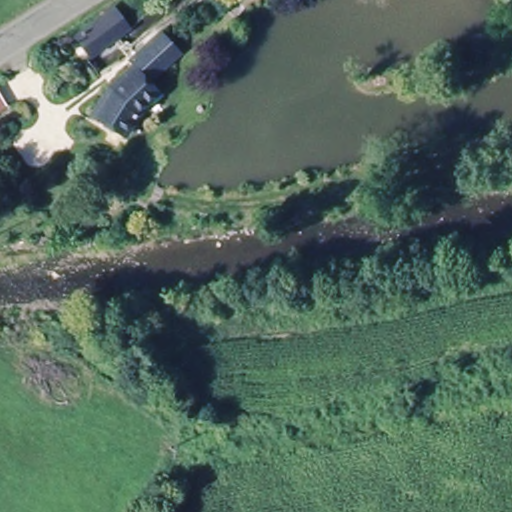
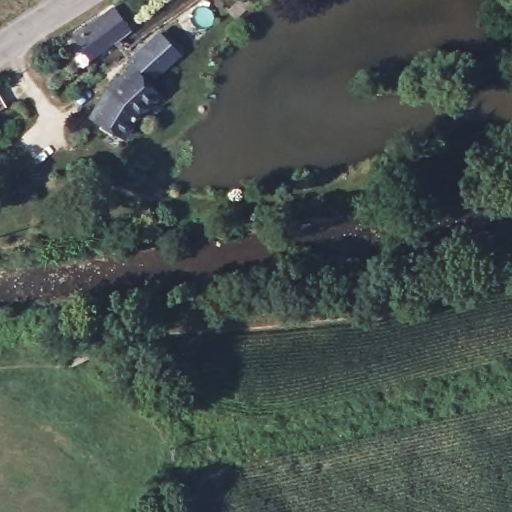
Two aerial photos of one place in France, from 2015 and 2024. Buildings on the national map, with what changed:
unchanged [(74,33),(104,12),(121,36),(90,57),(74,33)]
unchanged [(148,75),(158,89),(124,122),(96,101),(115,80),(134,62),(132,57),(164,32),(180,51),(148,75)]

